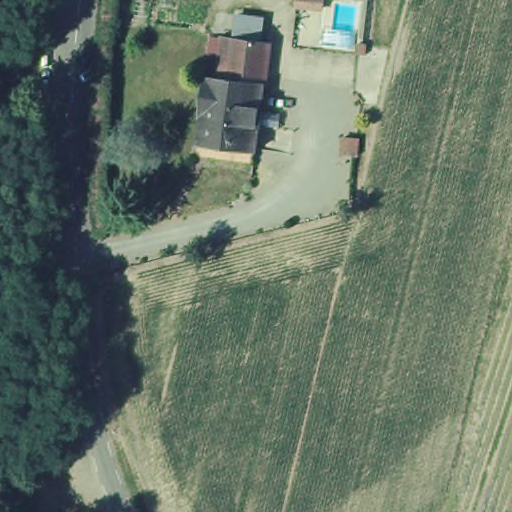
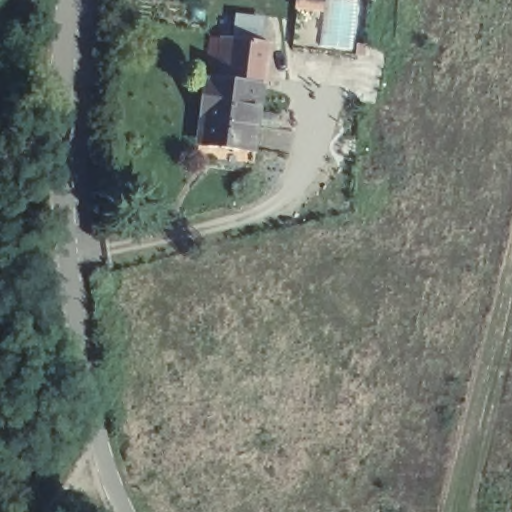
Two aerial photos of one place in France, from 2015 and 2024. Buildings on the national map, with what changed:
unchanged [(247,73),(245,85),(209,80),(212,37),(265,43),(262,74),(257,74),(247,73)]
unchanged [(198,106),(200,85),(209,86),(209,80),(245,85),(247,73),(257,74),(255,85),(262,86),(252,153),(202,148),(192,146),(198,106)]

